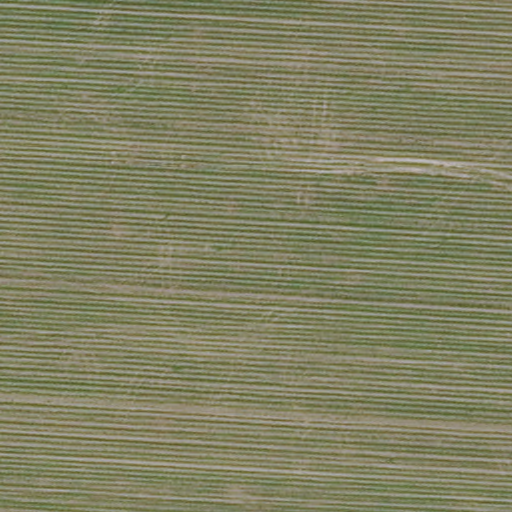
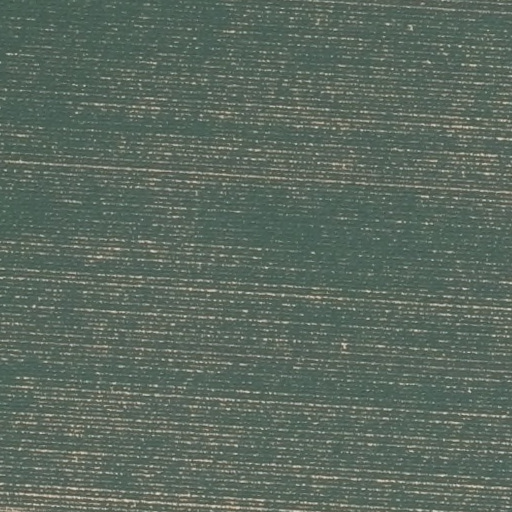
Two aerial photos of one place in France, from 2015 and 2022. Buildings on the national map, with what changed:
[]

